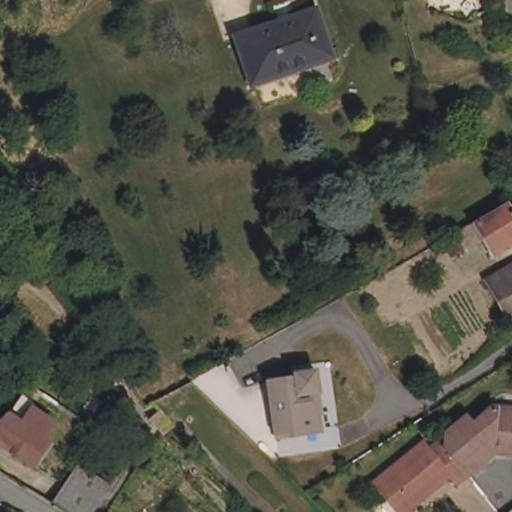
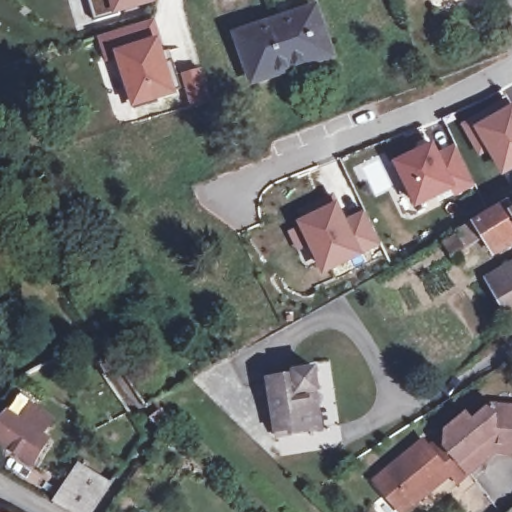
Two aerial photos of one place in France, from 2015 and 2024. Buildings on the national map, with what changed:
new [(120,14),(95,20),(90,0),(150,0),(119,9),(120,14)]
unchanged [(240,35),(315,10),(330,54),(255,80),(240,35)]
new [(161,43),(158,44),(160,53),(170,50),(174,60),(182,87),(157,95),(159,101),(135,109),(127,84),(130,84),(122,56),(109,60),(104,44),(102,39),(112,35),(111,33),(155,21),(161,43)]
new [(511,112),(512,112),(512,170),(507,173),(490,146),(482,152),(466,126),(475,121),(501,106),(506,103),(511,112)]
new [(397,163),(434,146),(438,156),(457,147),(474,184),(455,192),(453,188),(417,204),(397,163)]
new [(302,227),(299,221),(303,219),(300,211),(337,195),(341,203),(350,220),(365,212),(382,247),(365,256),(325,275),(311,246),(300,252),(290,233),(302,227)]
unchanged [(475,220),(508,202),(512,209),(512,241),(492,251),(485,238),(475,244),(465,229),(465,226),(475,220)]
unchanged [(475,244),(485,238),(492,251),(495,257),(463,274),(444,241),(465,229),(475,244)]
unchanged [(512,265),(512,315),(490,278),(512,265)]
unchanged [(277,430),(270,379),(296,375),(295,370),(317,367),(320,387),(317,387),(320,406),(322,429),(294,433),(278,436),(277,430)]
unchanged [(37,464),(34,462),(0,439),(0,423),(12,410),(24,393),(30,396),(62,420),(50,438),(54,440),(37,464)]
unchanged [(162,408),(175,424),(167,431),(165,433),(152,417),(162,408)]
unchanged [(424,446),(435,459),(444,451),(445,437),(467,420),(472,427),(493,410),(512,411),(512,457),(483,456),(482,468),(455,489),(448,481),(410,512),(397,512),(377,485),(424,446)]
unchanged [(110,483),(92,512),(69,512),(54,502),(80,464),(110,483)]

